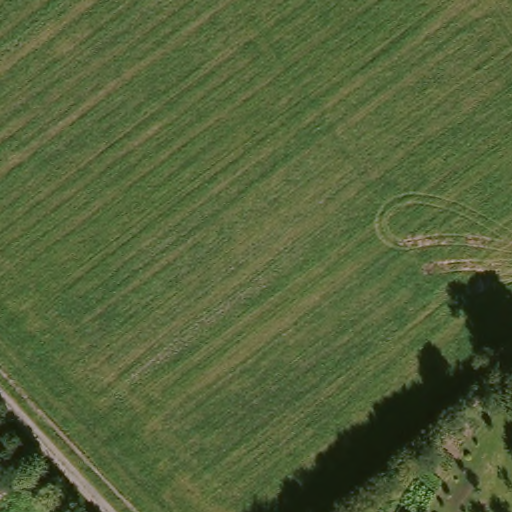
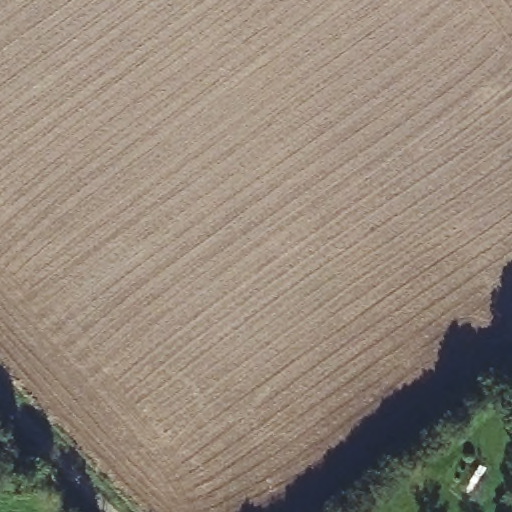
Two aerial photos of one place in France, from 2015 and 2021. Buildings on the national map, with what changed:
[]

